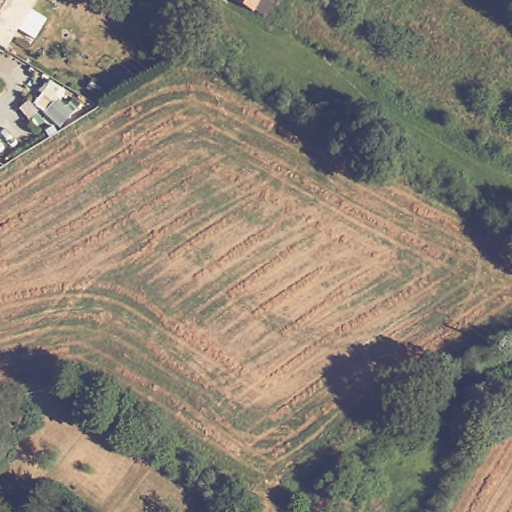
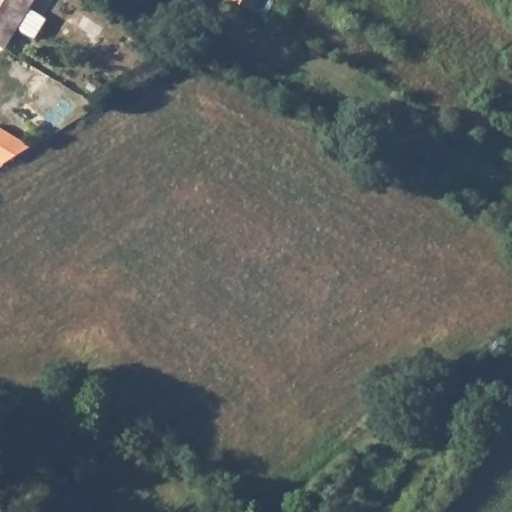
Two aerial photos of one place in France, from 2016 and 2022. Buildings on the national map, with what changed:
unchanged [(38,0),(6,50),(0,46),(0,0),(38,0)]
unchanged [(235,0),(257,0),(251,9),(235,0)]
new [(35,146),(6,164),(0,160),(0,125),(35,146)]

